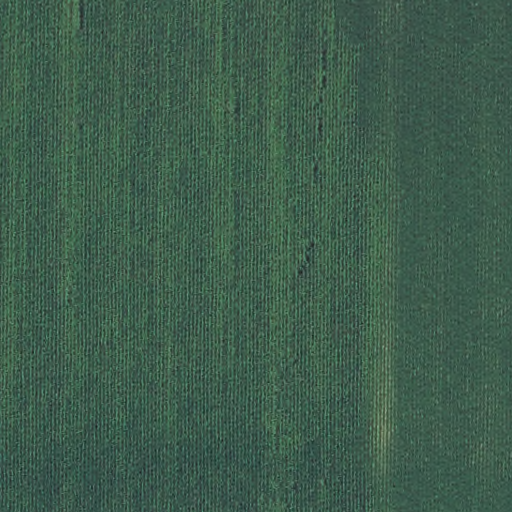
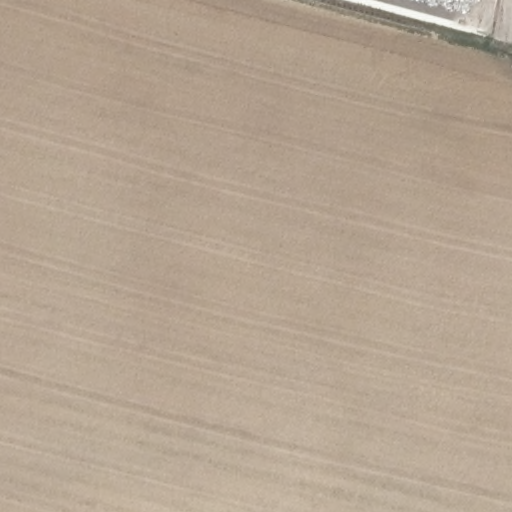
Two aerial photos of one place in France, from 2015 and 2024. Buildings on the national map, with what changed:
[]

